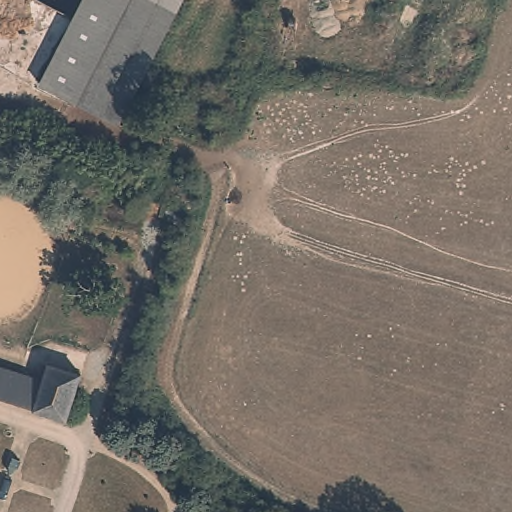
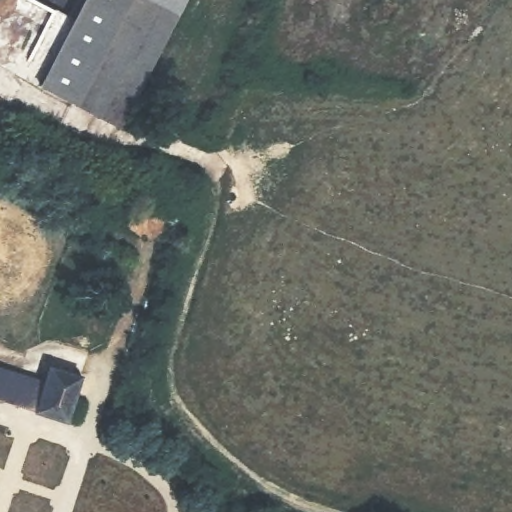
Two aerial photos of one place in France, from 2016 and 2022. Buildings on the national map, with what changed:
unchanged [(85,0),(184,0),(117,128),(39,86),(85,0)]
unchanged [(44,377),(49,361),(80,370),(81,371),(66,417),(65,416),(35,406),(0,395),(0,363),(44,377)]

